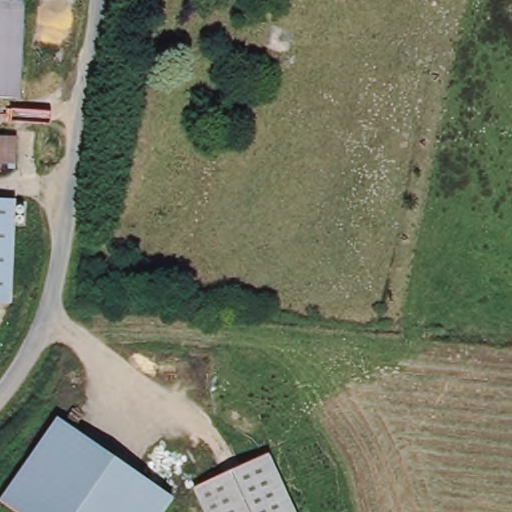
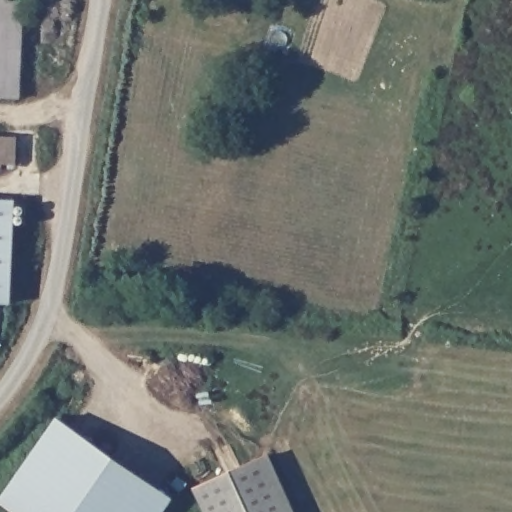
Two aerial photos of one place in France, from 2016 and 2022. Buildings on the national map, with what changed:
unchanged [(0,98),(0,0),(28,0),(25,99),(0,98)]
unchanged [(21,165),(0,164),(0,138),(22,139),(21,165)]
unchanged [(7,305),(0,305),(0,201),(13,202),(7,305)]
unchanged [(61,415),(174,497),(164,512),(24,512),(2,496),(61,415)]
unchanged [(294,512),(200,512),(189,488),(268,455),(294,512)]

